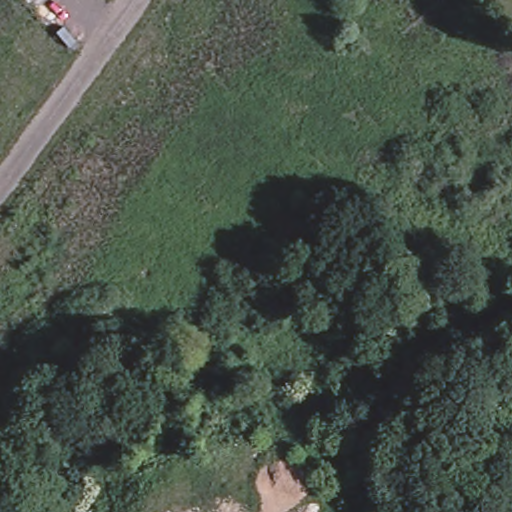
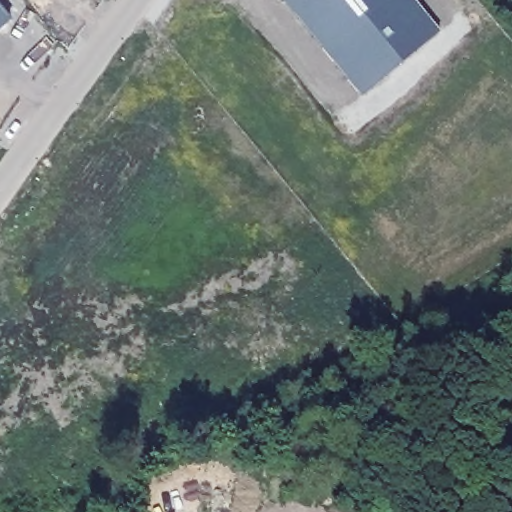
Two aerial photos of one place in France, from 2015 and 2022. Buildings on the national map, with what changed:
new [(441,30),(360,95),(281,0),(416,0),(441,30)]
new [(0,24),(0,4),(10,15),(0,24)]

